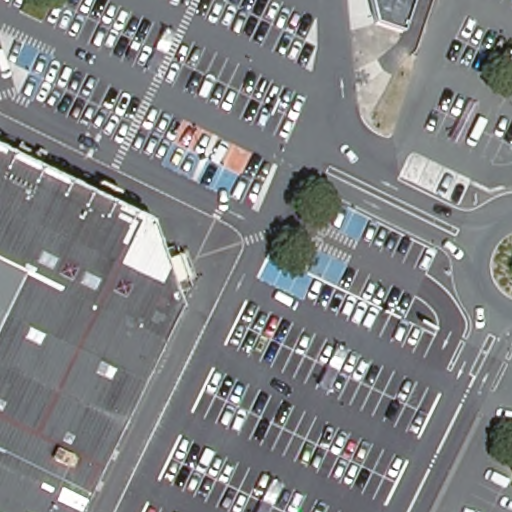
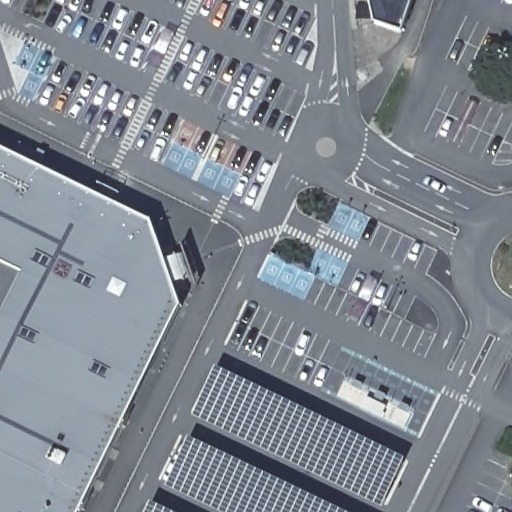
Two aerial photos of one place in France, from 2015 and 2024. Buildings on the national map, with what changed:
unchanged [(406,34),(378,25),(372,0),(416,0),(406,34)]
unchanged [(0,141),(12,147),(6,158),(0,155),(0,141)]
unchanged [(80,195),(115,212),(125,217),(144,226),(178,311),(80,512),(0,512),(0,155),(6,158),(26,168),(31,157),(38,160),(32,171),(44,176),(48,165),(85,184),(80,195)]
unchanged [(144,226),(125,217),(115,212),(121,201),(154,218),(155,220),(161,235),(166,248),(178,243),(189,271),(177,277),(189,306),(178,311),(144,226)]
new [(337,428),(339,424),(344,427),(342,430),(344,431),(346,428),(406,462),(378,511),(319,477),(238,439),(196,415),(199,411),(194,408),(215,372),(228,379),(337,428)]
new [(221,512),(165,484),(189,438),(297,489),(344,512),(221,512)]
new [(172,512),(147,512),(153,503),(172,512)]

